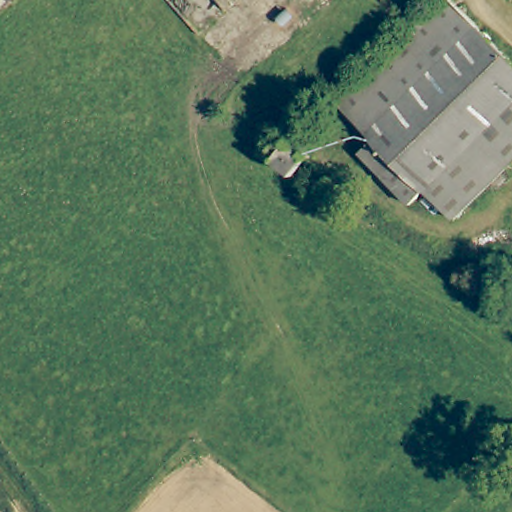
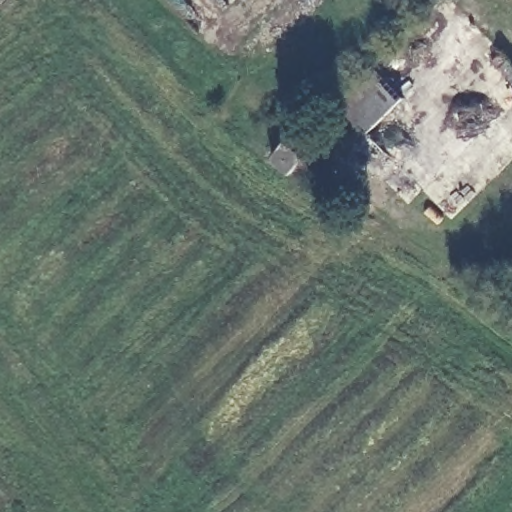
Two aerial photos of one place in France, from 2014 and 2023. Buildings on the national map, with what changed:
demolished [(512,67),(512,155),(448,219),(418,189),(403,203),(353,152),(368,138),(361,132),(470,25),(512,67)]
unchanged [(331,102),(373,61),(403,91),(361,132),(331,102)]
unchanged [(287,140),(306,155),(291,173),(273,158),(287,140)]

